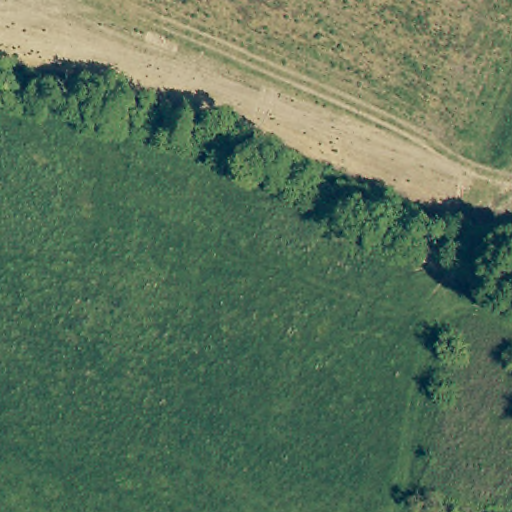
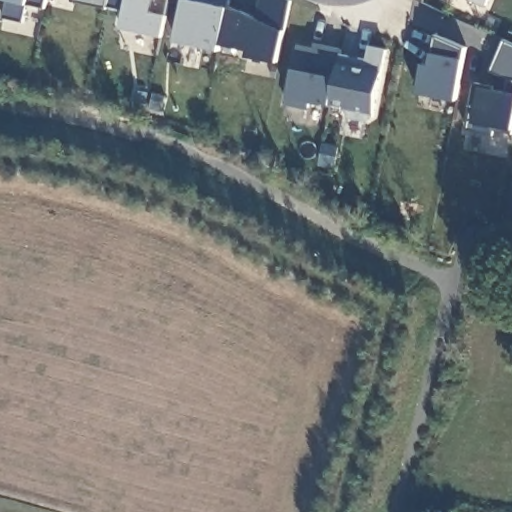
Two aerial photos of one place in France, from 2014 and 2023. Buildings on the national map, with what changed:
new [(3,15),(7,0),(46,0),(44,7),(28,3),(24,21),(3,15)]
new [(151,11),(166,14),(162,37),(120,28),(124,10),(75,0),(153,0),(151,11)]
new [(182,0),(232,0),(231,4),(256,15),(259,0),(291,0),(284,28),(277,60),(248,55),(249,48),(221,43),(219,49),(175,40),(182,0)]
new [(472,0),(489,0),(486,6),(472,0)]
new [(422,60),(431,63),(437,35),(467,47),(457,99),(418,93),(422,60)]
new [(288,94),(292,66),(297,42),(314,45),(315,39),(342,46),(340,52),(366,57),(369,43),(387,47),(374,117),(365,121),(351,118),(347,109),(329,105),(309,101),(309,108),(287,104),(288,94)]
new [(481,86),(506,90),(509,77),(491,69),(505,39),(512,43),(512,133),(495,130),(494,134),(470,130),(481,86)]

